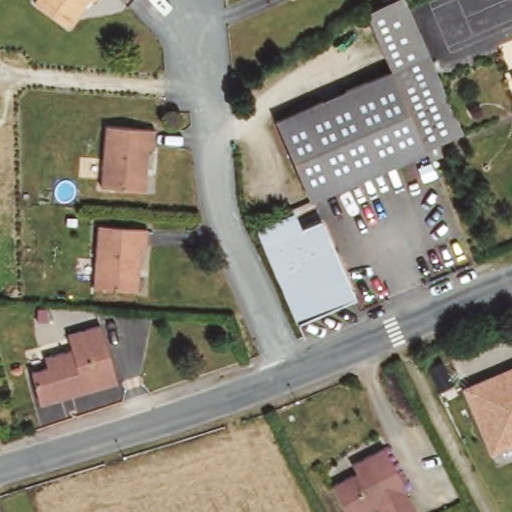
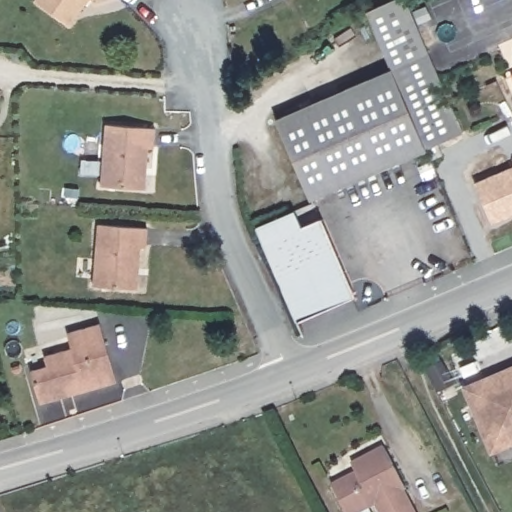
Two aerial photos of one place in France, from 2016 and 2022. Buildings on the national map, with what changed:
unchanged [(90,0),(72,26),(36,1),(37,0),(93,0),(90,0)]
unchanged [(469,136),(431,152),(318,202),(282,115),(393,68),(369,11),(396,0),(410,0),(469,136)]
unchanged [(111,126),(161,129),(159,149),(152,150),(148,188),(107,186),(111,126)]
new [(476,184),(512,170),(512,214),(492,222),(476,184)]
unchanged [(356,294),(302,320),(267,242),(260,228),(294,213),(301,227),(324,217),(356,294)]
unchanged [(152,231),(151,251),(143,252),(140,290),(98,288),(105,228),(152,231)]
unchanged [(45,366),(42,356),(70,347),(65,333),(98,323),(117,381),(39,404),(30,371),(45,366)]
unchanged [(512,444),(488,453),(460,388),(512,366),(512,444)]
unchanged [(355,463),(388,447),(421,512),(385,512),(381,503),(362,512),(351,512),(333,484),(360,471),(355,463)]

